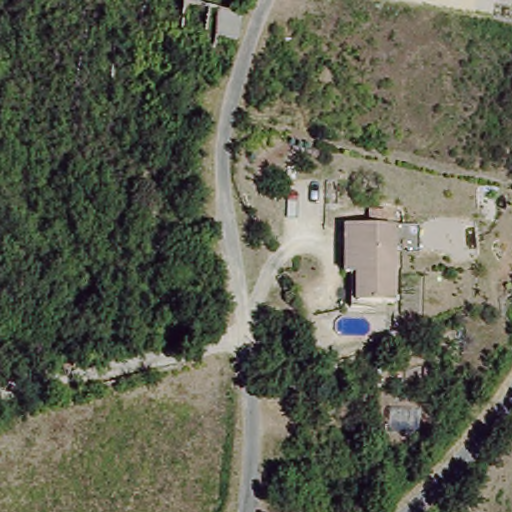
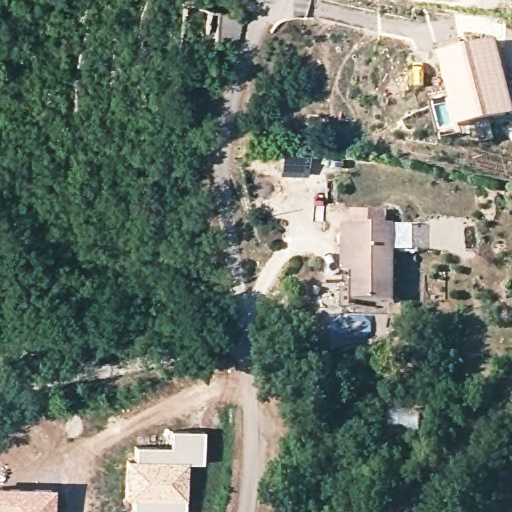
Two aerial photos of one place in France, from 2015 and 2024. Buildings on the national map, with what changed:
unchanged [(219,50),(223,25),(243,29),(240,54),(219,50)]
new [(442,55),(495,42),(512,113),(512,116),(458,129),(442,55)]
unchanged [(395,311),(354,310),(355,278),(345,277),(347,229),(358,229),(398,231),(395,311)]
unchanged [(292,384),(308,387),(307,405),(288,402),(292,384)]
new [(202,460),(138,459),(138,446),(172,447),(172,430),(202,431),(202,460)]
new [(202,465),(188,465),(187,500),(186,512),(133,512),(133,500),(125,500),(125,460),(138,459),(171,460),(202,460),(202,465)]
new [(52,512),(0,512),(0,487),(52,488),(52,512)]

